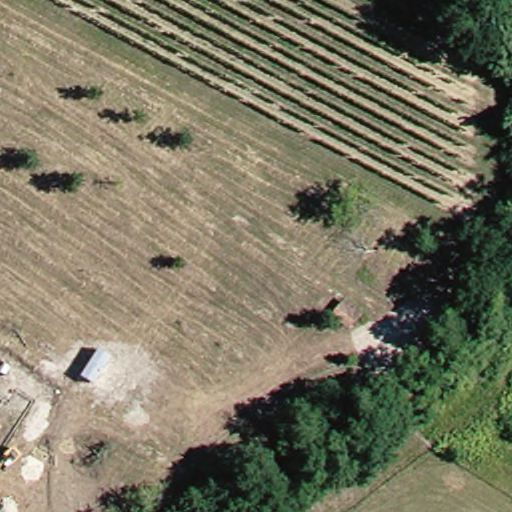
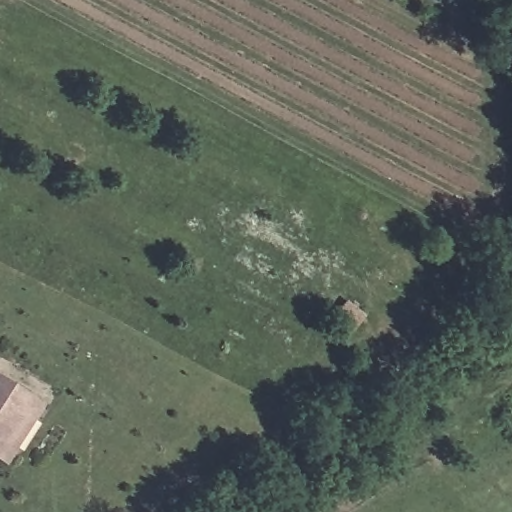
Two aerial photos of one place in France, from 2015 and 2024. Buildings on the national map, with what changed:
new [(5,465),(0,462),(0,376),(45,405),(5,465)]

